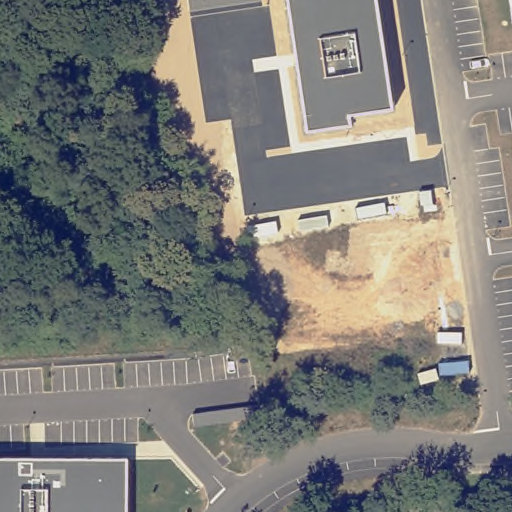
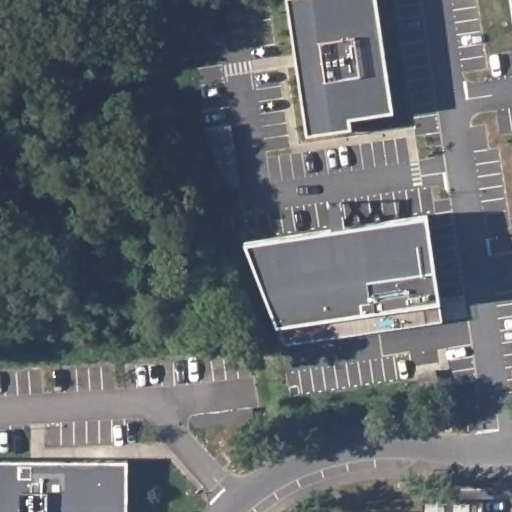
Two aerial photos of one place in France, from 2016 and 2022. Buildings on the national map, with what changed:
new [(262,0),(190,11),(188,0),(261,0),(262,0)]
unchanged [(287,0),(376,0),(392,109),(349,115),(350,125),(307,131),(287,0)]
new [(427,214),(442,320),(285,343),(245,240),(427,214)]
new [(253,406),(255,419),(193,427),(192,414),(253,406)]
unchanged [(126,512),(0,512),(0,459),(128,460),(126,512)]
new [(482,501),(482,512),(422,512),(422,501),(482,501)]

